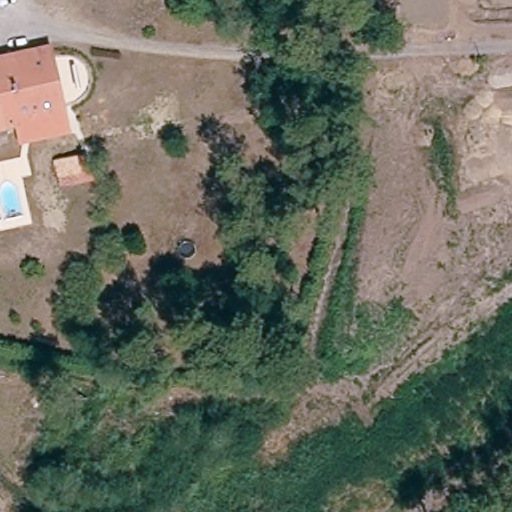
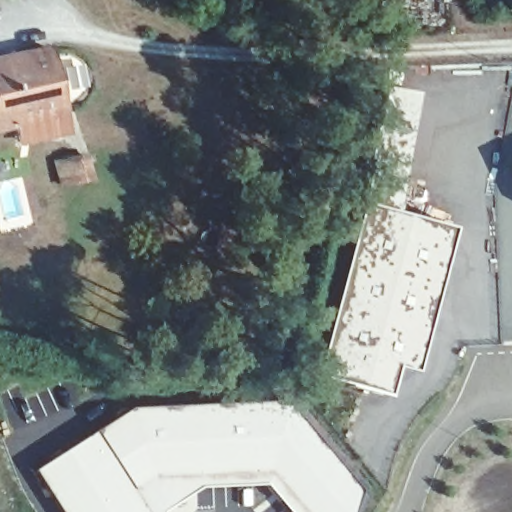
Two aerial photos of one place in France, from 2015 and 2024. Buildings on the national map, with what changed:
new [(6,0),(12,0),(9,3),(6,0)]
unchanged [(64,121),(0,136),(0,64),(48,52),(64,121)]
new [(417,92),(395,211),(453,227),(412,374),(392,368),(385,394),(313,374),(360,201),(381,86),(417,92)]
unchanged [(78,163),(81,180),(59,184),(55,168),(78,163)]
new [(126,410),(133,407),(252,402),(286,403),(361,489),(351,512),(287,512),(263,485),(200,487),(162,512),(59,512),(32,470),(126,410)]

